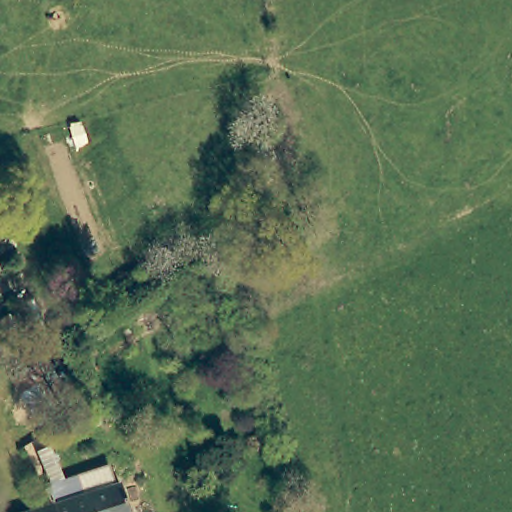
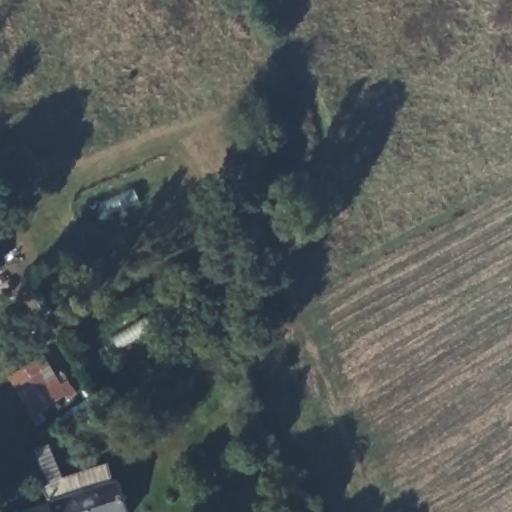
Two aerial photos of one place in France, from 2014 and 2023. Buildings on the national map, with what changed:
unchanged [(7,324),(0,312),(0,310),(11,303),(19,317),(7,324)]
unchanged [(40,382),(26,358),(45,347),(59,372),(40,382)]
unchanged [(50,443),(63,477),(111,461),(118,479),(54,500),(36,448),(50,443)]
unchanged [(54,500),(118,479),(130,512),(58,512),(54,500)]
unchanged [(49,501),(54,500),(58,512),(16,512),(49,501)]

